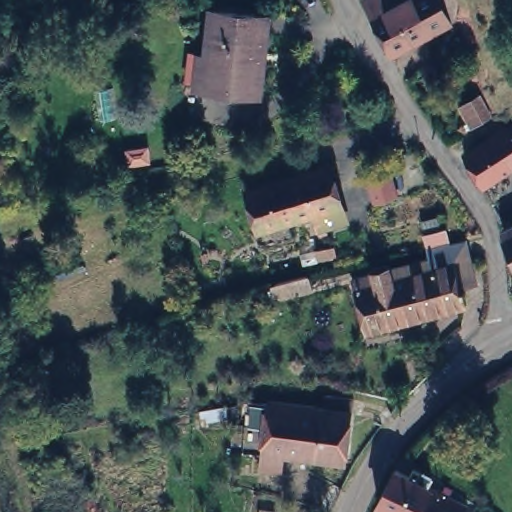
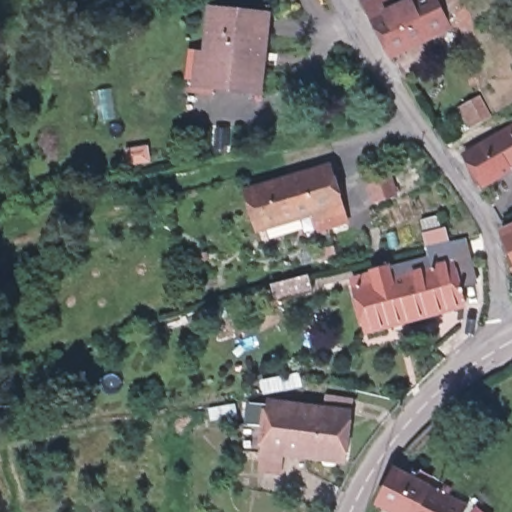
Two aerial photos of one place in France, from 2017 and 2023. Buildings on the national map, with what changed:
unchanged [(394,0),(432,0),(440,28),(379,48),(367,8),(394,0)]
unchanged [(252,48),(250,82),(206,80),(207,59),(207,3),(264,13),(261,48),(252,48)]
unchanged [(266,48),(262,91),(185,83),(185,75),(197,80),(197,54),(207,59),(206,80),(250,82),(252,48),(261,48),(266,48)]
unchanged [(490,117),(469,123),(465,106),(485,99),(490,117)]
unchanged [(512,116),(512,166),(479,184),(459,153),(512,116)]
unchanged [(327,162),(339,199),(257,226),(244,189),(327,162)]
unchanged [(392,175),(399,197),(370,207),(362,186),(392,175)]
unchanged [(427,219),(442,215),(445,227),(449,226),(454,238),(434,243),(431,230),(427,219)]
unchanged [(512,222),(512,255),(499,229),(512,222)]
unchanged [(467,303),(370,325),(360,280),(380,277),(377,266),(395,262),(397,271),(456,259),(467,303)]
unchanged [(311,267),(314,280),(281,289),(277,276),(311,267)]
unchanged [(250,418),(270,421),(272,397),(329,405),(330,393),(356,398),(349,458),(288,449),(286,467),(264,463),(266,448),(248,445),(250,418)]
unchanged [(403,512),(376,499),(393,465),(407,472),(411,464),(429,474),(426,482),(465,502),(459,512),(403,512)]

